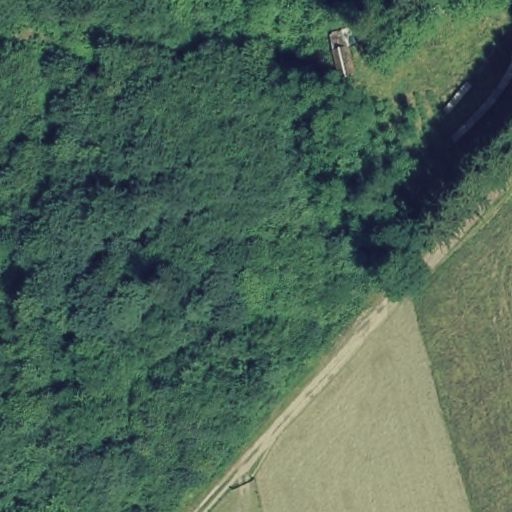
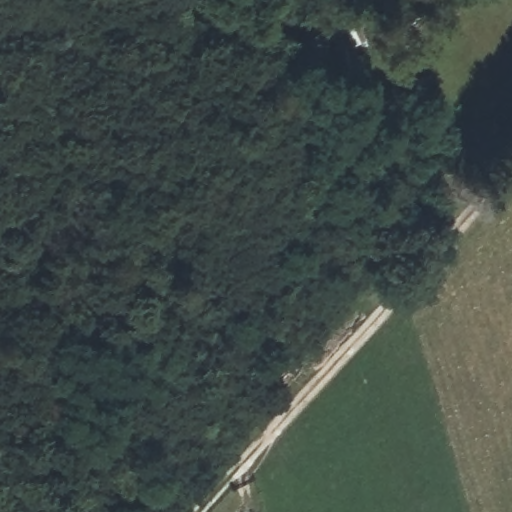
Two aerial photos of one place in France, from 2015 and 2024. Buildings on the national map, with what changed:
unchanged [(327,27),(360,14),(369,37),(359,41),(364,68),(334,79),(327,27)]

